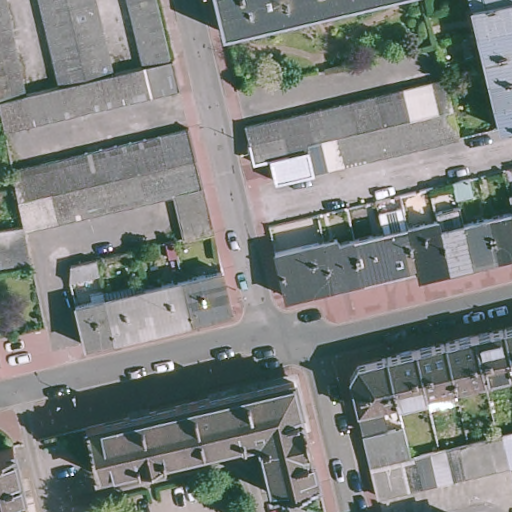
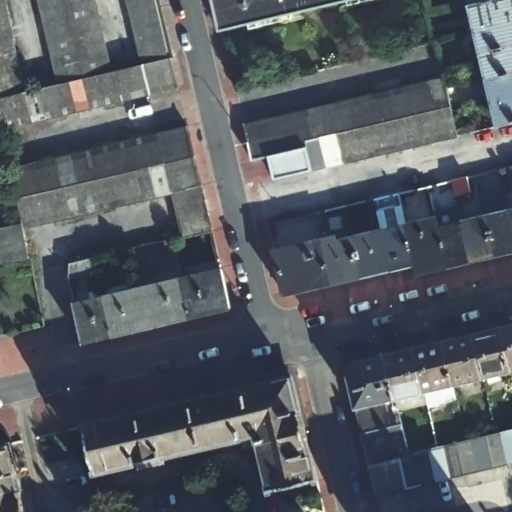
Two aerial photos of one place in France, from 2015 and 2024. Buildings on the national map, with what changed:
unchanged [(8,26),(11,39),(14,52),(16,64),(19,77),(22,92),(37,89),(51,86),(55,85),(52,70),(49,57),(46,44),(43,31),(40,19),(37,6),(36,0),(93,0),(94,6),(97,19),(100,32),(103,44),(106,57),(110,72),(125,69),(139,65),(135,50),(132,37),(130,25),(126,12),(124,0),(151,0),(152,6),(156,19),(158,32),(162,44),(165,59),(168,57),(171,72),(175,87),(145,94),(132,97),(117,101),(102,105),(88,107),(73,111),(58,115),(45,118),(30,122),(15,125),(0,128),(0,0),(3,0),(6,12),(8,26)]
unchanged [(214,0),(362,0),(324,10),(261,25),(222,35),(217,12),(214,0)]
unchanged [(473,7),(468,7),(467,0),(501,0),(477,6),(473,7)]
unchanged [(480,31),(473,7),(477,6),(501,0),(512,0),(512,23),(496,27),(480,31)]
unchanged [(480,31),(496,27),(512,23),(512,49),(500,52),(485,56),(480,31)]
unchanged [(500,52),(512,49),(512,74),(491,80),(485,56),(500,52)]
unchanged [(497,104),(491,80),(512,74),(512,101),(497,104)]
unchanged [(275,177),(270,156),(253,159),(251,152),(248,141),(245,122),(275,116),(280,115),(288,112),(302,109),(317,106),(322,105),(345,99),(360,96),(373,92),(388,89),(402,86),(417,82),(421,82),(430,79),(445,76),(447,85),(448,91),(451,105),(453,110),(458,133),(453,135),(444,137),(430,140),(423,142),(415,144),(412,144),(400,147),(385,151),(382,152),(371,154),(356,157),(342,161),(340,162),(330,164),(327,165),(312,169),(300,172),(290,174),(288,174),(275,177)]
unchanged [(497,104),(512,101),(512,125),(505,127),(503,127),(497,104)]
unchanged [(16,187),(12,172),(27,169),(42,166),(56,162),(72,159),(85,156),(101,152),(115,149),(129,145),(145,142),(159,138),(188,131),(192,146),(195,160),(198,170),(199,175),(202,189),(206,204),(210,219),(212,234),(183,241),(180,226),(176,211),(173,196),(159,200),(150,202),(144,203),(130,207),(116,210),(115,210),(100,213),(85,217),(82,217),(70,220),(56,224),(48,226),(41,227),(25,231),(30,260),(0,266),(0,232),(24,227),(18,202),(16,187)]
unchanged [(453,184),(468,180),(472,196),(457,199),(453,184)]
unchanged [(383,235),(378,214),(403,208),(400,196),(415,192),(419,208),(403,212),(408,229),(436,222),(439,232),(463,227),(488,220),(512,215),(512,255),(497,258),(472,264),(448,270),(419,277),(417,267),(392,273),(378,277),(363,280),(353,242),(383,235)]
unchanged [(509,202),(507,196),(512,195),(512,213),(509,202)]
unchanged [(363,280),(333,287),(328,267),(323,243),(335,241),(336,246),(353,242),(363,280)]
unchanged [(328,267),(333,287),(285,298),(274,255),(295,250),(323,243),(328,267)]
unchanged [(67,275),(73,266),(95,261),(98,275),(70,282),(67,275)]
unchanged [(185,288),(182,282),(222,272),(231,311),(191,320),(185,288)]
unchanged [(182,282),(185,288),(191,320),(153,330),(143,291),(182,282)]
unchanged [(143,332),(115,338),(107,308),(105,300),(143,291),(153,330),(143,332)]
unchanged [(75,307),(105,300),(107,308),(115,338),(85,346),(75,307)]
unchanged [(512,332),(512,378),(509,378),(498,335),(512,332)]
unchanged [(509,378),(480,386),(469,342),(498,335),(509,378)]
unchanged [(469,342),(480,386),(450,392),(440,349),(469,342)]
unchanged [(450,392),(455,408),(425,416),(424,411),(421,400),(416,382),(413,367),(410,357),(413,356),(440,349),(450,392)]
unchanged [(385,362),(410,357),(413,367),(416,382),(421,400),(392,407),(390,396),(389,394),(382,363),(385,362)]
unchanged [(382,363),(389,394),(390,396),(392,407),(380,410),(385,431),(358,437),(350,403),(345,383),(353,370),(382,363)]
unchanged [(113,423),(123,421),(130,420),(185,407),(195,404),(256,390),(294,381),(319,485),(272,496),(259,439),(202,452),(135,468),(99,477),(87,430),(113,423)]
unchanged [(432,457),(435,457),(440,456),(455,452),(465,450),(469,448),(483,445),(494,442),(497,442),(512,438),(512,469),(505,471),(491,474),(476,477),(462,481),(451,483),(448,484),(433,488),(418,492),(404,495),(390,498),(374,502),(367,473),(360,445),(360,442),(398,432),(405,460),(406,463),(411,462),(426,459),(432,457)]
unchanged [(21,493),(25,512),(0,512),(0,450),(10,447),(12,456),(21,493)]

